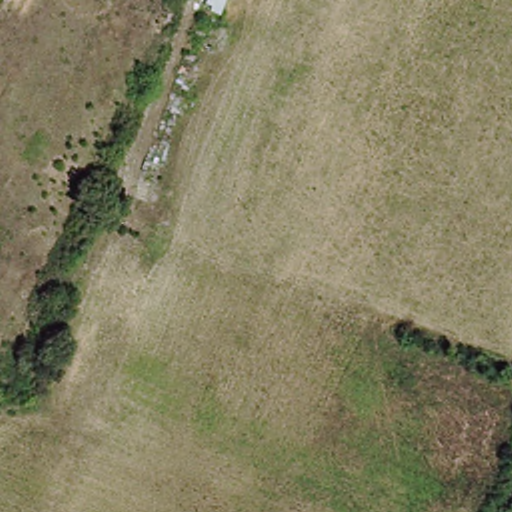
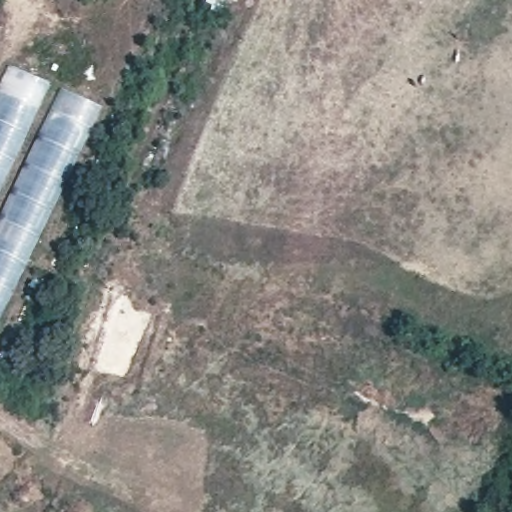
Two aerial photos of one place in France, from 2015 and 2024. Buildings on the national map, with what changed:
new [(103,106),(0,320),(0,87),(10,66),(103,106)]

